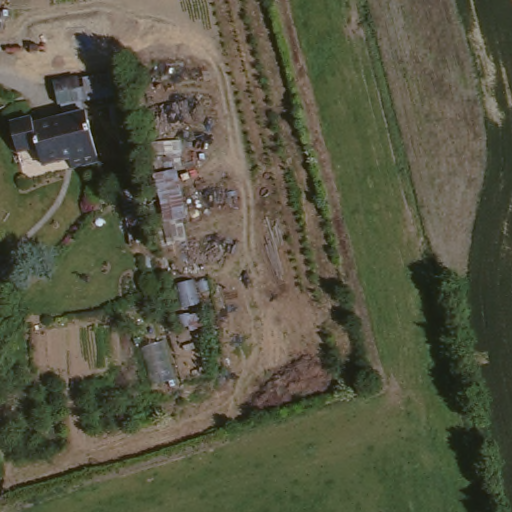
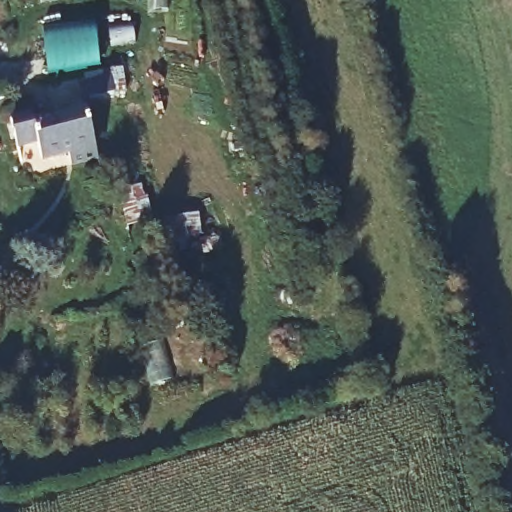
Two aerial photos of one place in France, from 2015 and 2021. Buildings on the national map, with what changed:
new [(45,33),(95,26),(99,66),(48,74),(45,33)]
unchanged [(43,114),(44,121),(96,109),(109,157),(83,164),(80,154),(53,161),(49,144),(29,149),(21,119),(43,114)]

